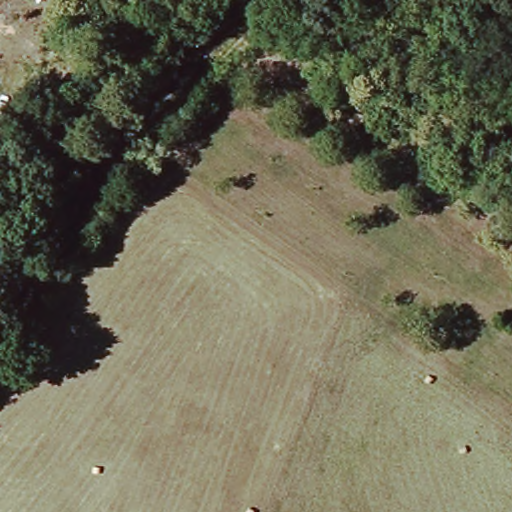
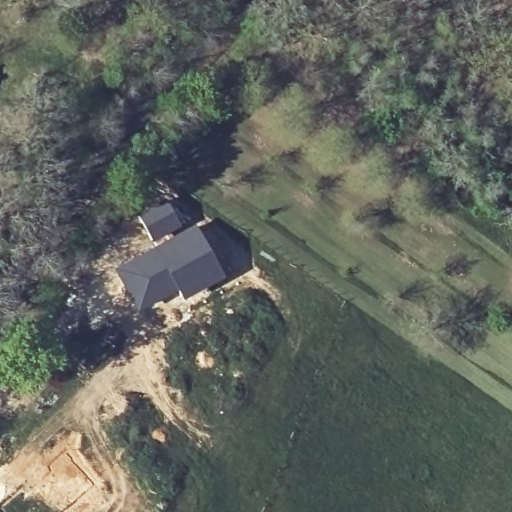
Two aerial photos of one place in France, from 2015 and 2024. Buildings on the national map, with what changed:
new [(168,200),(183,230),(153,245),(137,214),(168,200)]
new [(153,245),(183,230),(196,222),(225,277),(183,301),(177,291),(136,313),(112,268),(153,245)]

